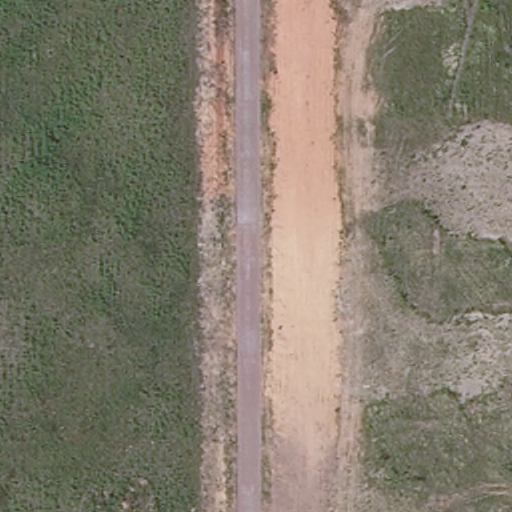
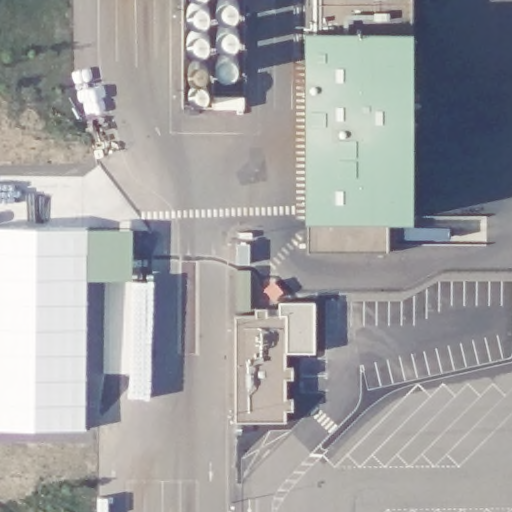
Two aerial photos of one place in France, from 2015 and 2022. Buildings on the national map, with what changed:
new [(238,48),(188,46),(188,0),(239,0),(238,48)]
new [(413,29),(415,217),(387,219),(389,250),(307,251),(306,217),(307,28),(306,0),(414,0),(413,29)]
new [(135,231),(135,283),(90,282),(88,432),(0,431),(0,230),(135,231)]
new [(235,314),(256,315),(255,307),(269,307),(269,315),(287,315),(288,366),(295,366),(295,377),(287,377),(286,398),(294,398),(294,409),(286,409),(286,420),(236,421),(235,314)]

